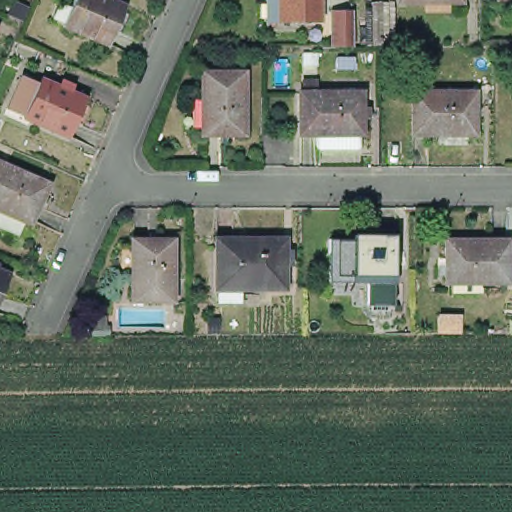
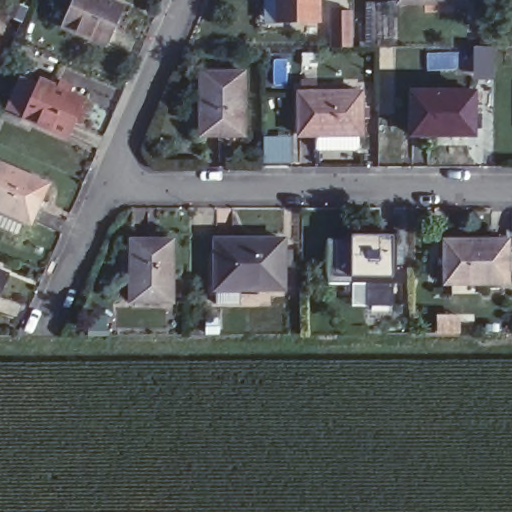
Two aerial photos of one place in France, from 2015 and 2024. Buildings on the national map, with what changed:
unchanged [(57,19),(65,0),(119,0),(102,39),(57,19)]
unchanged [(311,0),(311,16),(265,16),(255,16),(255,0),(311,0)]
unchanged [(353,39),(333,39),(333,6),(353,7),(353,39)]
unchanged [(243,66),(243,129),(200,129),(200,67),(243,66)]
unchanged [(63,131),(19,112),(18,115),(0,108),(0,103),(14,69),(33,77),(35,72),(80,92),(63,131)]
unchanged [(310,139),(310,128),(292,128),(293,84),(357,84),(357,128),(354,128),(354,140),(350,143),(314,142),(310,139)]
unchanged [(407,84),(470,84),(470,127),(407,127),(407,84)]
unchanged [(0,153),(44,171),(27,212),(20,209),(13,223),(0,218),(0,153)]
unchanged [(127,208),(167,208),(168,269),(127,269),(127,208)]
unchanged [(323,282),(323,228),(392,228),(390,283),(388,283),(387,304),(361,304),(362,283),(323,282)]
unchanged [(211,295),(211,232),(280,233),(280,282),(237,282),(237,295),(211,295)]
unchanged [(505,275),(478,275),(478,285),(447,285),(447,276),(440,275),(440,232),(505,232),(505,275)]
unchanged [(113,296),(113,275),(163,276),(162,297),(113,296)]

